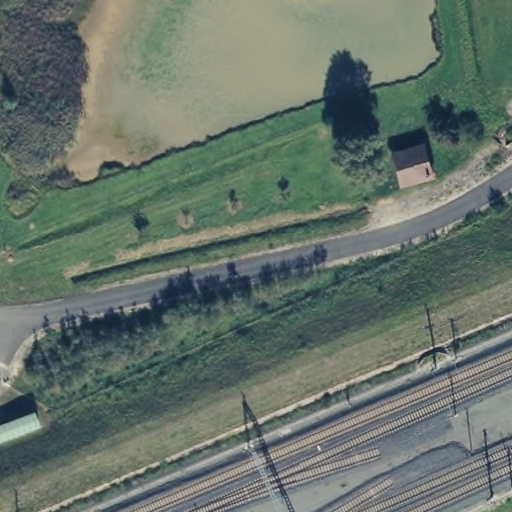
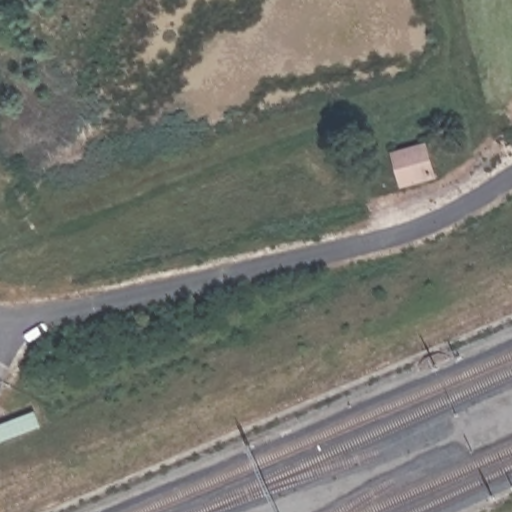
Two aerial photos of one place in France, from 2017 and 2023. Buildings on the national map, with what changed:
unchanged [(401,184),(396,165),(394,155),(425,147),(427,157),(432,176),(401,184)]
unchanged [(0,443),(0,425),(31,412),(37,429),(0,443)]

